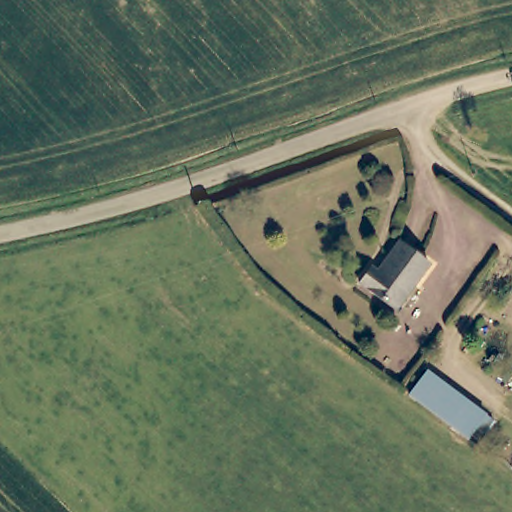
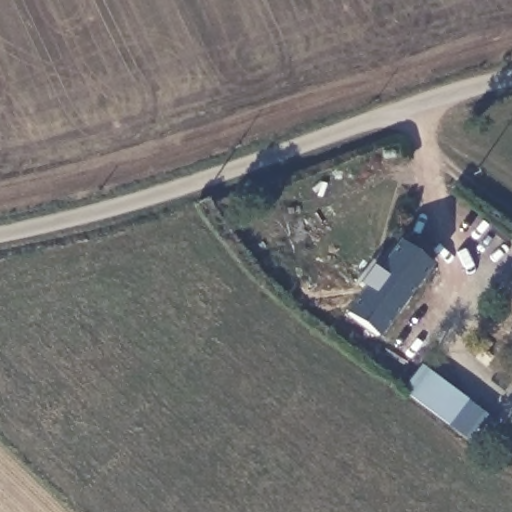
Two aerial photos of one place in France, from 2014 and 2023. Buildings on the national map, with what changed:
unchanged [(357,283),(369,265),(375,269),(398,242),(430,263),(394,310),(357,283)]
unchanged [(481,436),(473,430),(464,441),(402,394),(422,370),(482,415),(492,422),(481,436)]

